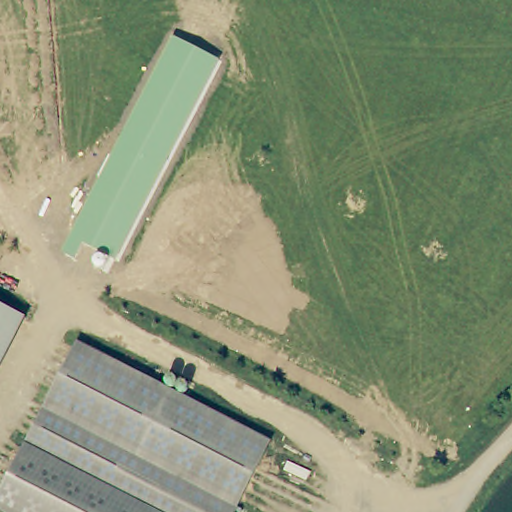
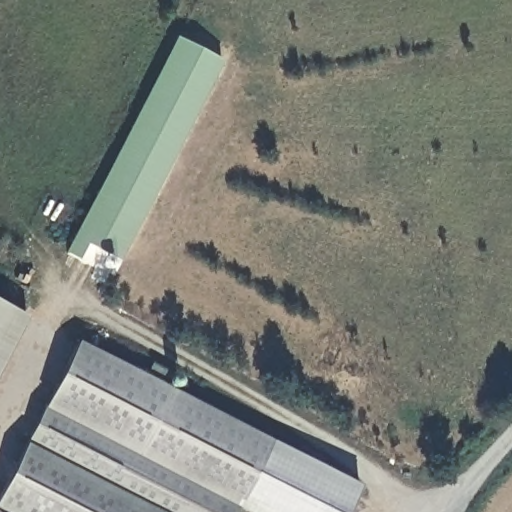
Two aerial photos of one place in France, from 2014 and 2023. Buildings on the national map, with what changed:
unchanged [(174,38),(220,61),(116,261),(85,245),(77,260),(64,254),(174,38)]
unchanged [(23,318),(0,363),(0,306),(23,318)]
unchanged [(75,343),(268,437),(231,512),(5,512),(0,509),(0,497),(75,343)]
new [(240,512),(233,509),(268,437),(360,486),(347,512),(240,512)]

